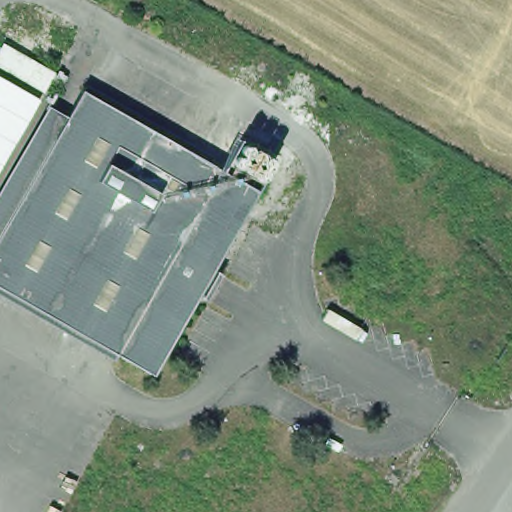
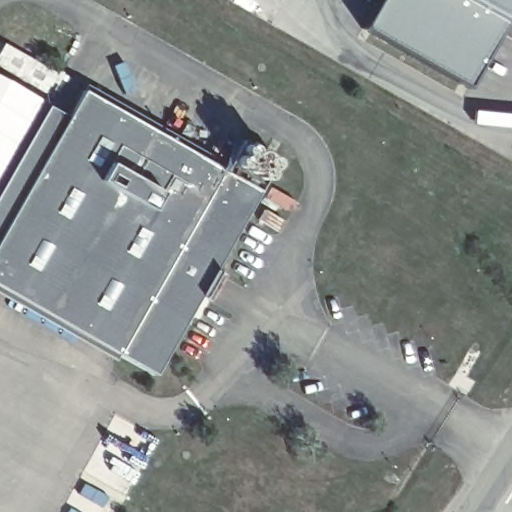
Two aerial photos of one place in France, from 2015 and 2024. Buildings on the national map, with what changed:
new [(511,22),(472,91),(370,29),(387,0),(512,0),(512,23),(511,22)]
unchanged [(0,58),(5,49),(57,80),(47,96),(0,70),(0,58)]
unchanged [(0,82),(40,105),(0,174),(0,82)]
unchanged [(179,286),(187,292),(142,373),(0,291),(0,206),(67,85),(246,188),(202,267),(192,262),(179,286)]
demolished [(215,160),(230,136),(265,156),(251,180),(215,160)]

